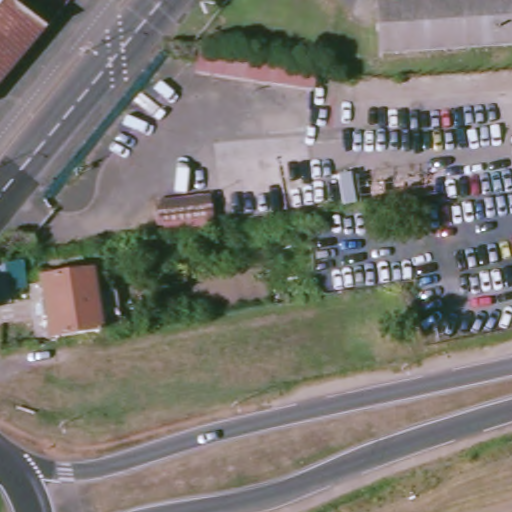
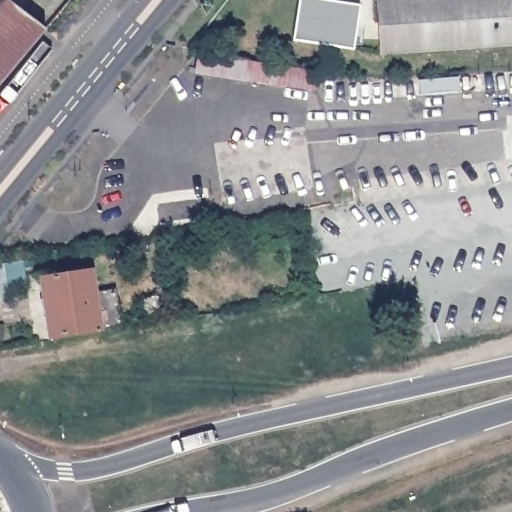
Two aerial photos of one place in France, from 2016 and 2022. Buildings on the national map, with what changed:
unchanged [(40,30),(0,77),(0,0),(1,0),(13,9),(40,30)]
unchanged [(13,9),(1,0),(23,0),(13,9)]
new [(355,50),(292,40),(298,0),(333,0),(360,4),(355,50)]
unchanged [(379,0),(512,0),(512,44),(381,52),(379,0)]
unchanged [(191,77),(195,58),(312,78),(310,95),(191,77)]
unchanged [(155,201),(210,194),(212,216),(158,224),(155,201)]
unchanged [(342,261),(375,256),(377,272),(345,277),(342,261)]
unchanged [(118,325),(96,329),(45,337),(35,279),(86,270),(90,291),(111,287),(118,325)]

